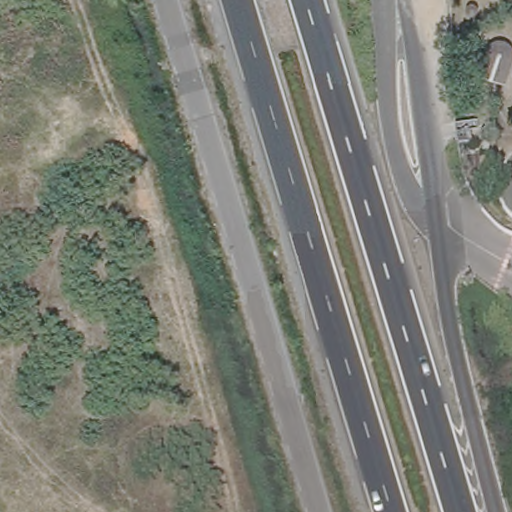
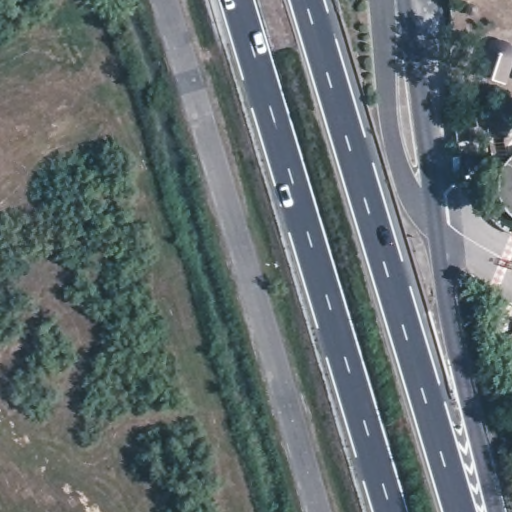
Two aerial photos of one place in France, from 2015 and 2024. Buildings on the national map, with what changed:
unchanged [(508,217),(498,200),(498,180),(504,161),(512,155),(512,219),(508,217)]

